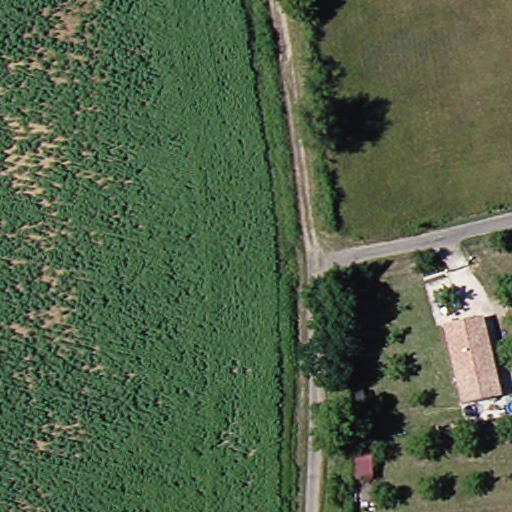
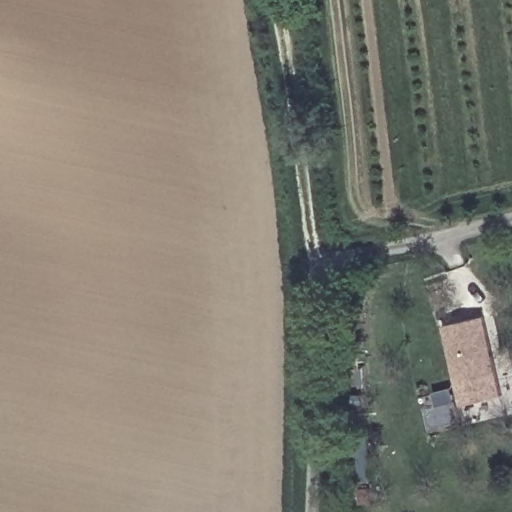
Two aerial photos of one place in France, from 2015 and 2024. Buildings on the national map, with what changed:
unchanged [(486,312),(498,370),(458,379),(446,320),(486,312)]

